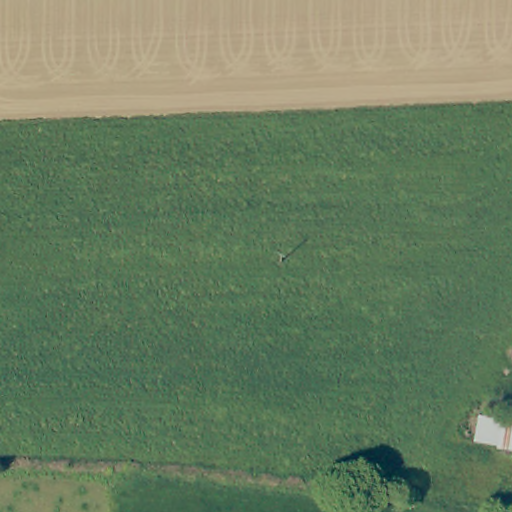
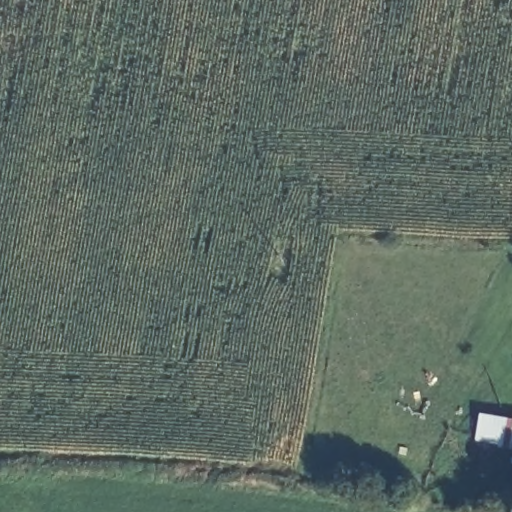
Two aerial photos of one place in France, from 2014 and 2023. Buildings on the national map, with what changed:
unchanged [(493,450),(470,445),(476,419),(512,425),(512,456),(493,452),(493,450)]

